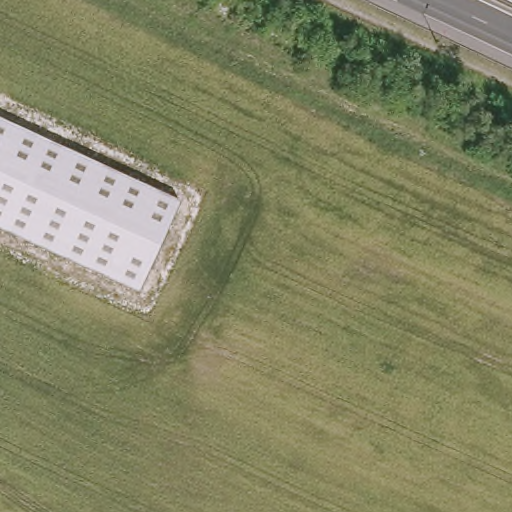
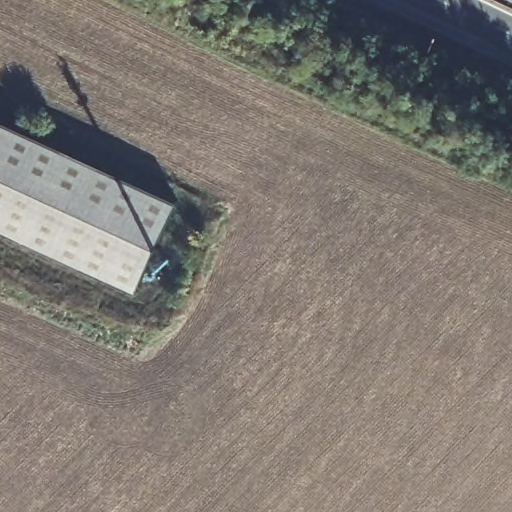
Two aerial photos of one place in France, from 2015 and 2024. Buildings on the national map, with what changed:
unchanged [(139,292),(0,228),(0,120),(179,201),(139,292)]

